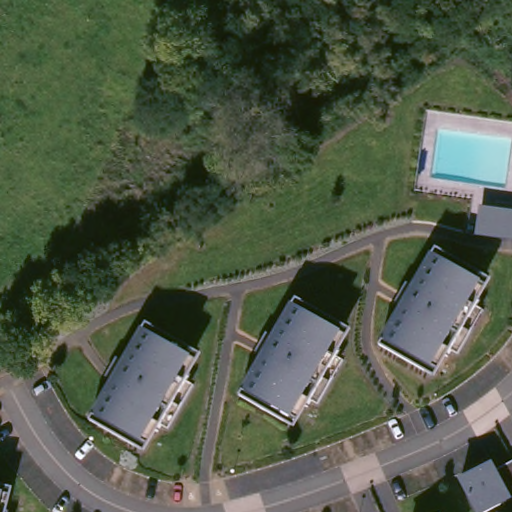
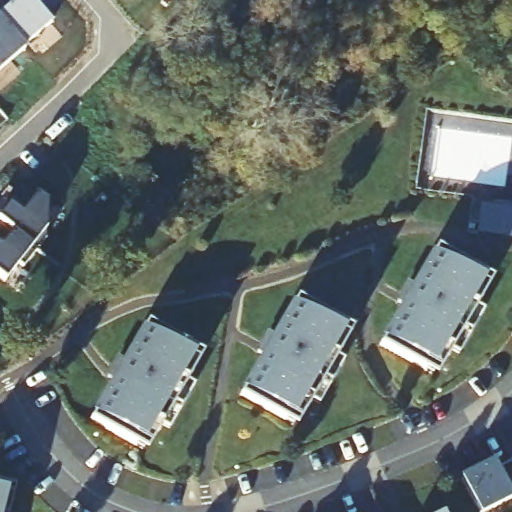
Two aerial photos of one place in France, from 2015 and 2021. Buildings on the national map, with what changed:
new [(35,0),(54,21),(26,45),(0,15),(18,0),(35,0)]
new [(26,45),(27,46),(0,70),(0,14),(0,15),(26,45)]
new [(6,203),(21,183),(45,201),(46,232),(5,281),(0,277),(0,204),(2,200),(6,203)]
unchanged [(512,210),(512,241),(475,236),(480,204),(512,210)]
unchanged [(443,234),(500,270),(444,374),(383,340),(443,234)]
unchanged [(300,290),(360,326),(302,427),(240,390),(300,290)]
unchanged [(145,312),(209,349),(156,444),(90,411),(145,312)]
unchanged [(460,475),(497,452),(505,463),(512,459),(512,497),(485,512),(481,512),(460,475)]
unchanged [(5,512),(0,512),(0,476),(13,479),(5,512)]
unchanged [(446,510),(447,512),(442,512),(446,510)]

